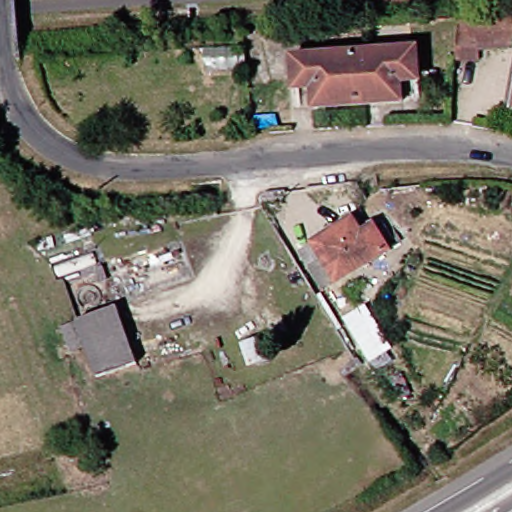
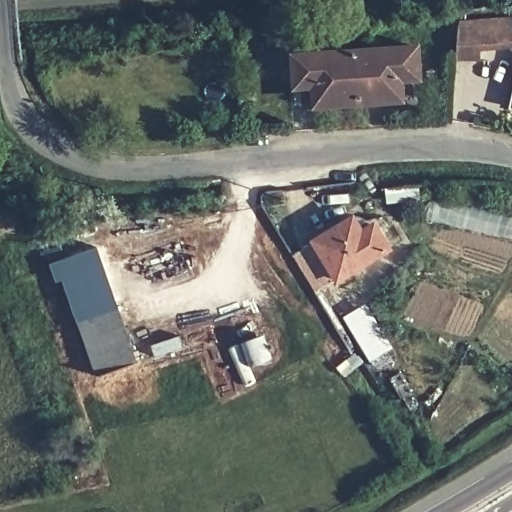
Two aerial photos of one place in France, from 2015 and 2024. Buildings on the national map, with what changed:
unchanged [(512,53),(481,55),(481,66),(456,64),(458,23),(512,19),(512,53)]
unchanged [(422,46),(424,75),(408,76),(410,101),(316,107),(314,82),(301,83),(298,55),(422,46)]
unchanged [(512,104),(512,112),(510,111),(512,104)]
unchanged [(356,217),(360,224),(372,217),(376,217),(380,218),(383,221),(400,243),(338,280),(314,241),(356,217)]
new [(315,292),(293,255),(314,241),(338,280),(315,292)]
new [(117,306),(79,320),(63,281),(57,284),(49,265),(97,247),(117,306)]
demolished [(77,293),(78,288),(81,284),(85,281),(89,279),(94,279),(99,281),(103,284),(106,288),(108,297),(106,302),(103,306),(98,309),(93,310),(88,310),(84,308),(80,304),(78,299),(77,298),(77,293)]
unchanged [(371,303),(400,347),(391,355),(403,372),(389,381),(377,360),(375,361),(349,320),(371,303)]
unchanged [(79,320),(117,306),(138,363),(100,378),(79,320)]
unchanged [(78,468),(70,448),(87,442),(94,462),(78,468)]

